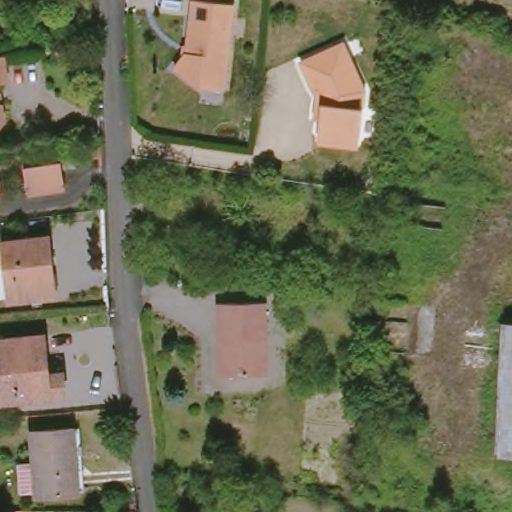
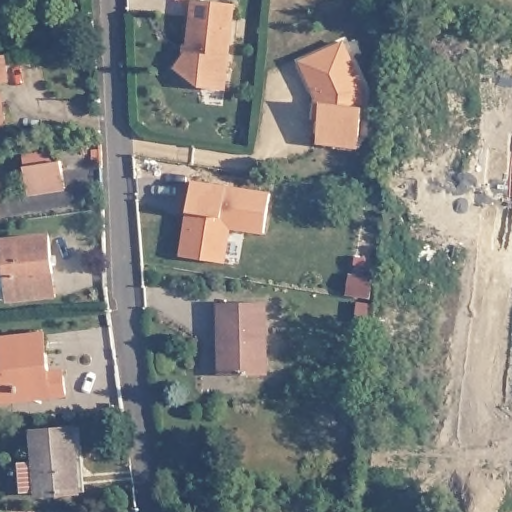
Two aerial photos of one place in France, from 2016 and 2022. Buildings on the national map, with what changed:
unchanged [(205,91),(179,71),(190,55),(196,2),(236,6),(228,79),(228,92),(205,91)]
unchanged [(80,25),(79,17),(92,15),(93,25),(95,41),(81,42),(80,25)]
unchanged [(346,42),(366,91),(360,137),(349,145),(327,142),(318,132),(322,102),(317,102),(318,95),(303,60),(346,42)]
unchanged [(13,55),(16,80),(8,82),(11,101),(13,113),(7,127),(0,129),(0,56),(13,55)]
unchanged [(63,189),(27,194),(24,166),(60,162),(63,189)]
new [(190,206),(194,181),(271,194),(265,232),(230,227),(225,262),(183,256),(188,219),(190,206)]
unchanged [(11,298),(5,241),(49,236),(56,294),(11,298)]
unchanged [(226,339),(226,306),(272,306),(272,377),(233,377),(225,377),(226,339)]
unchanged [(1,400),(0,393),(0,379),(5,377),(0,338),(45,332),(51,372),(65,370),(67,392),(1,400)]
unchanged [(30,430),(73,426),(81,425),(85,490),(77,490),(35,493),(30,430)]

